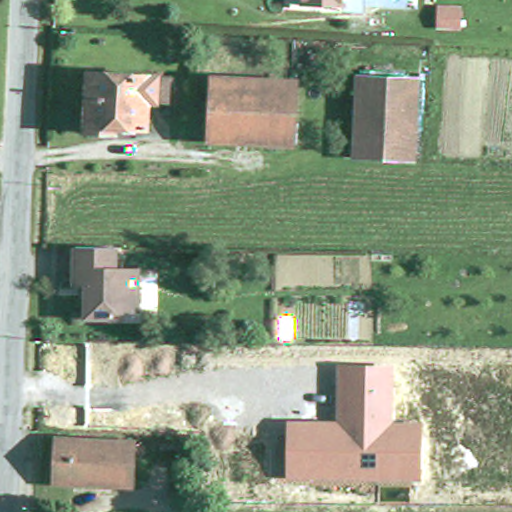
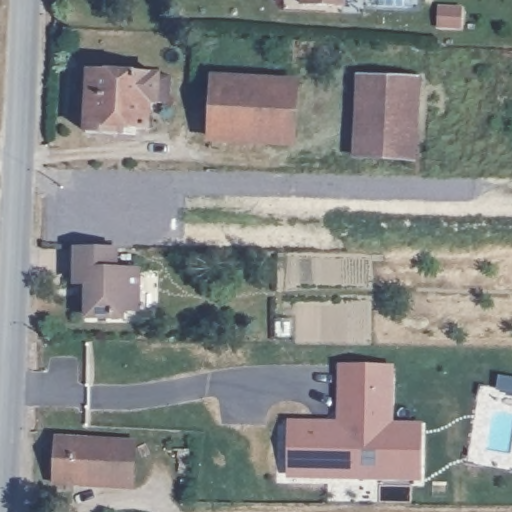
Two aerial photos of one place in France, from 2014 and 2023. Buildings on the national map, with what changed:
unchanged [(292,0),(333,0),(333,1),(292,0)]
unchanged [(80,68),(164,71),(163,97),(144,97),(142,123),(111,122),(111,131),(77,130),(80,68)]
unchanged [(415,157),(357,158),(358,75),(417,76),(415,157)]
unchanged [(215,77),(292,79),(290,139),(213,137),(215,77)]
unchanged [(142,271),(145,312),(124,313),(125,320),(95,321),(92,286),(81,286),(80,249),(121,248),(122,271),(142,271)]
unchanged [(337,422),(337,363),(395,365),(393,422),(425,422),(421,485),(287,485),(289,421),(337,422)]
unchanged [(55,482),(56,438),(90,439),(87,482),(55,482)]
unchanged [(127,440),(126,484),(87,482),(90,439),(127,440)]

